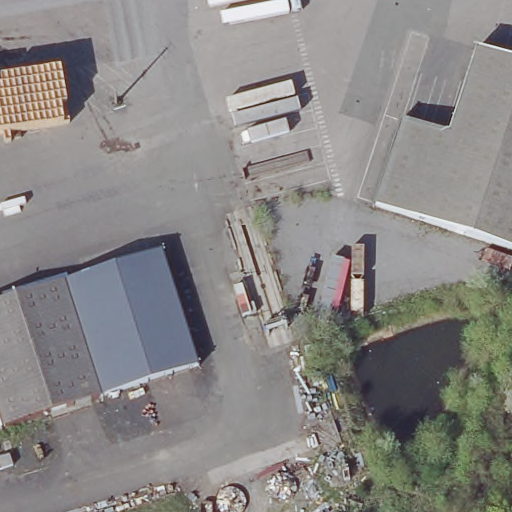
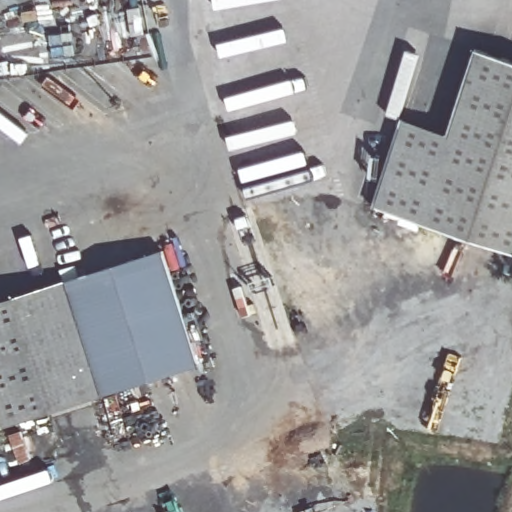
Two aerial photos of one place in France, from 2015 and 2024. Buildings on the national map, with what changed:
unchanged [(454,135),(482,48),(512,58),(512,249),(426,221),(378,206),(397,147),(445,162),(454,135)]
unchanged [(406,119),(454,135),(445,162),(397,147),(406,119)]
unchanged [(161,250),(197,369),(99,397),(63,282),(161,250)]
unchanged [(3,428),(0,417),(0,302),(63,282),(99,397),(3,428)]
unchanged [(0,429),(0,417),(3,428),(0,429)]

